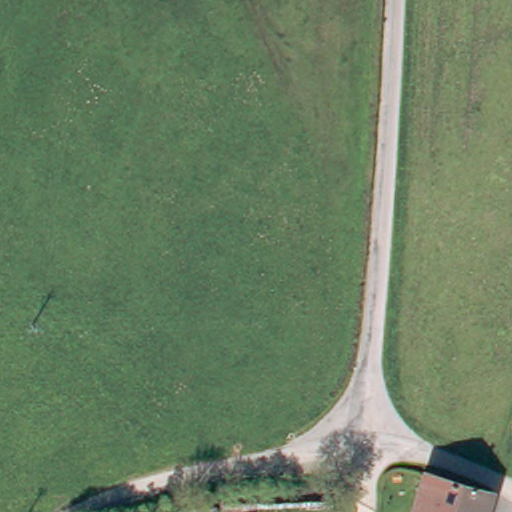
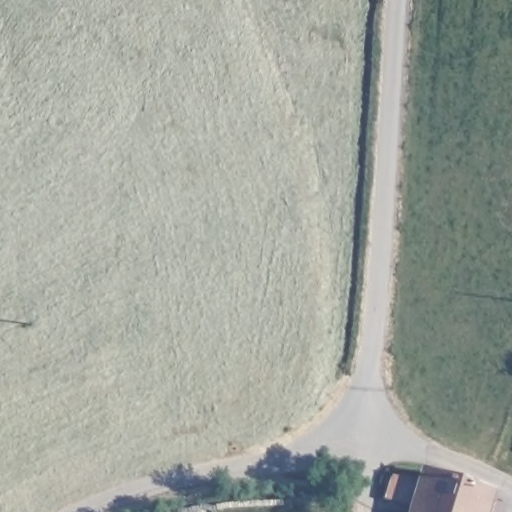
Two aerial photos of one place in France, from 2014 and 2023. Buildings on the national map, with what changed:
unchanged [(401,469),(468,484),(463,512),(393,512),(401,469)]

